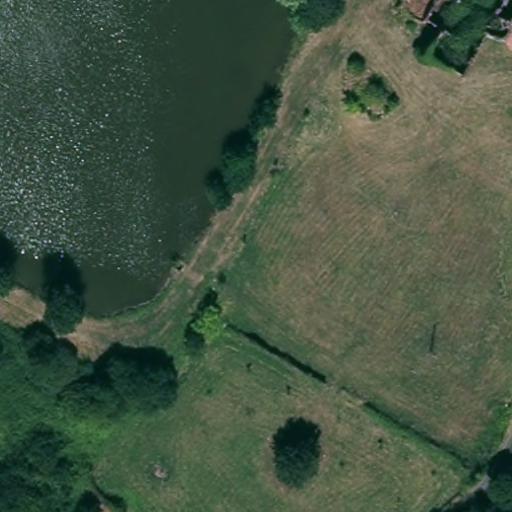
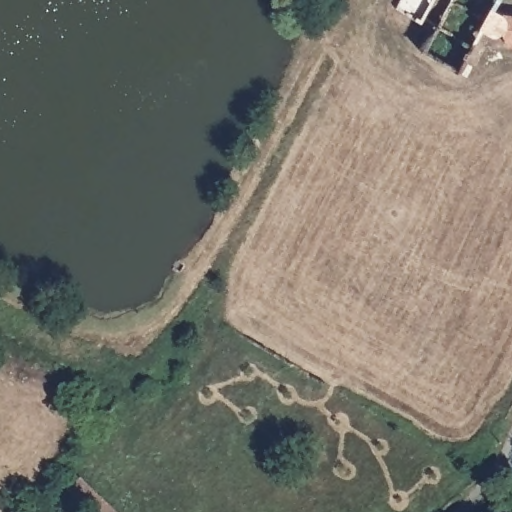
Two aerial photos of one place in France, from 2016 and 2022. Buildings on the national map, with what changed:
unchanged [(512,14),(512,48),(501,46),(503,30),(503,13),(512,14)]

